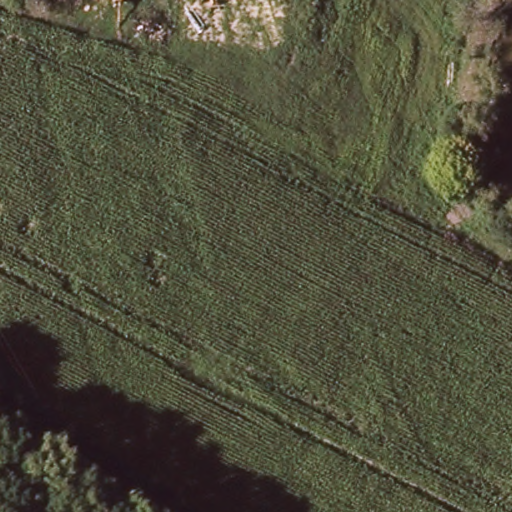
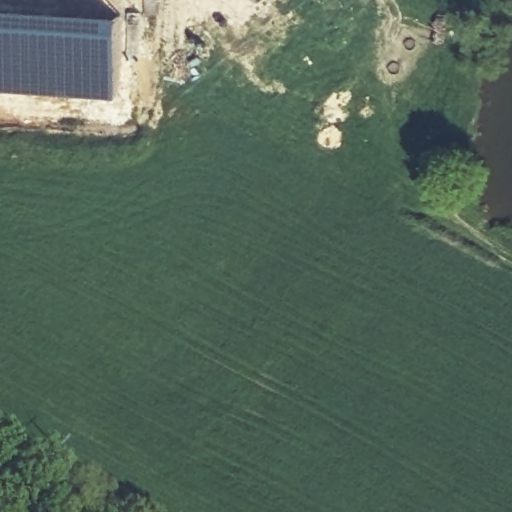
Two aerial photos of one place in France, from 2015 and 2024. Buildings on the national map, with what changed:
new [(121,14),(117,98),(45,93),(0,90),(0,5),(121,14)]

